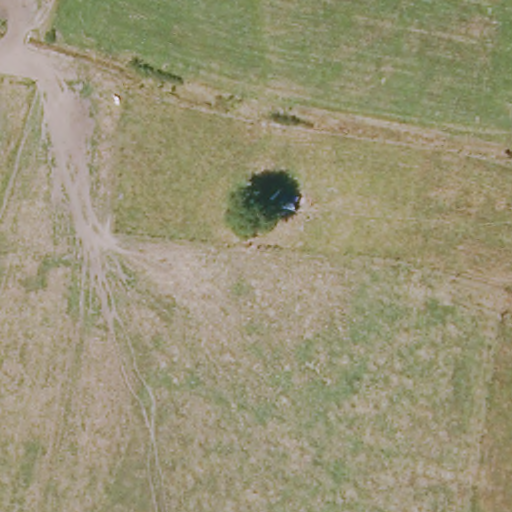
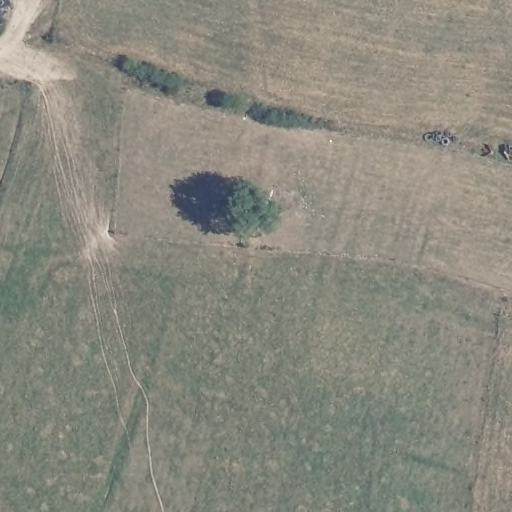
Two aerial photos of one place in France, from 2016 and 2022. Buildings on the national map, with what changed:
[]

